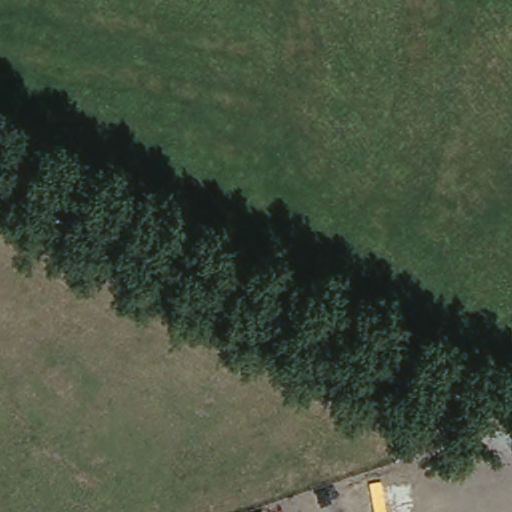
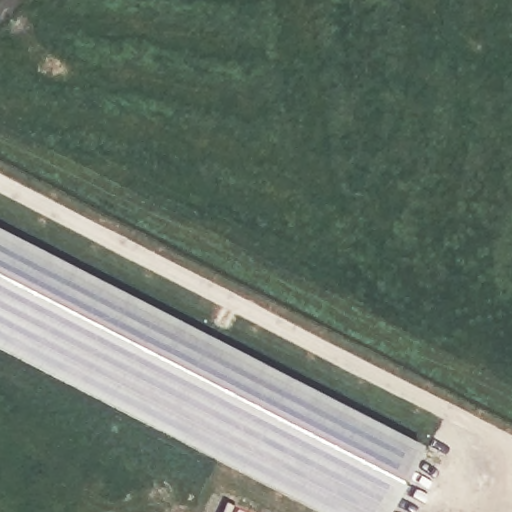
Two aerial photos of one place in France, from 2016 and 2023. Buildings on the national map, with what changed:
new [(384,512),(319,512),(0,344),(0,225),(420,440),(384,512)]

